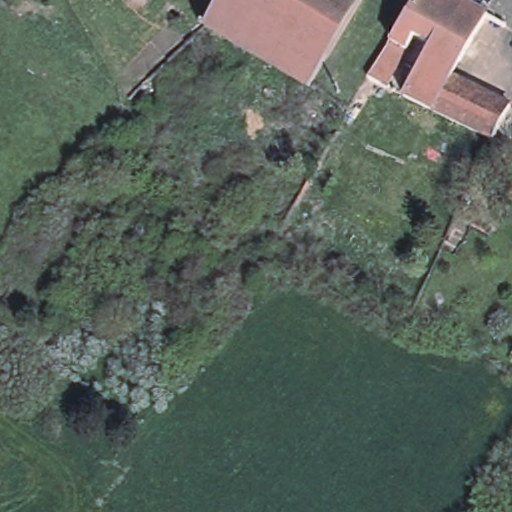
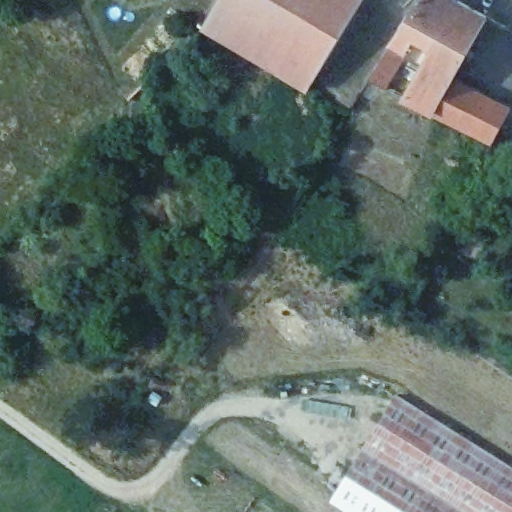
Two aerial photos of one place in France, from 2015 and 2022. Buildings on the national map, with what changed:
unchanged [(202,24),(217,0),(315,0),(277,69),(202,24)]
unchanged [(307,87),(277,69),(315,0),(359,0),(325,58),(307,87)]
unchanged [(415,6),(417,7),(420,0),(454,0),(458,2),(489,18),(461,66),(433,51),(416,41),(408,54),(390,83),(387,89),(373,82),(371,81),(375,75),(392,46),(415,6)]
unchanged [(406,99),(433,51),(461,66),(453,81),(434,113),(406,99)]
unchanged [(512,111),(495,144),(492,143),(434,113),(453,81),(512,111)]
new [(512,468),(512,512),(354,512),(338,502),(402,399),(512,468)]

